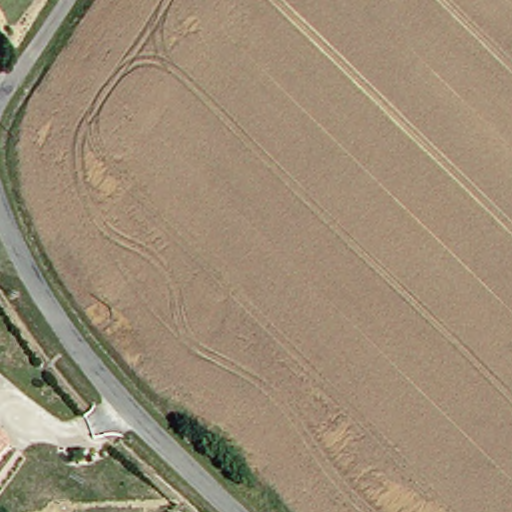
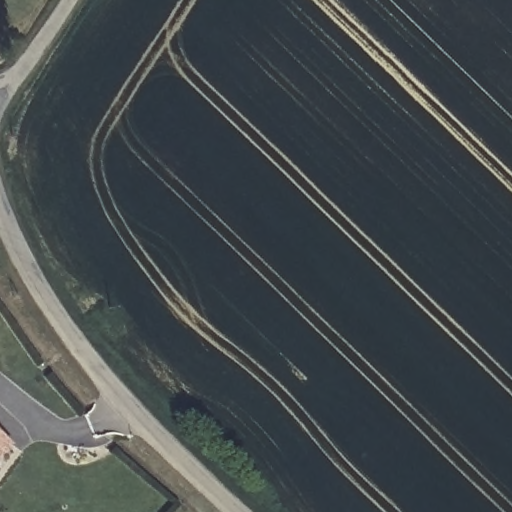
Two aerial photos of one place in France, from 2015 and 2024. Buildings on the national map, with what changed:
unchanged [(6,440),(0,447),(0,434),(6,440)]

